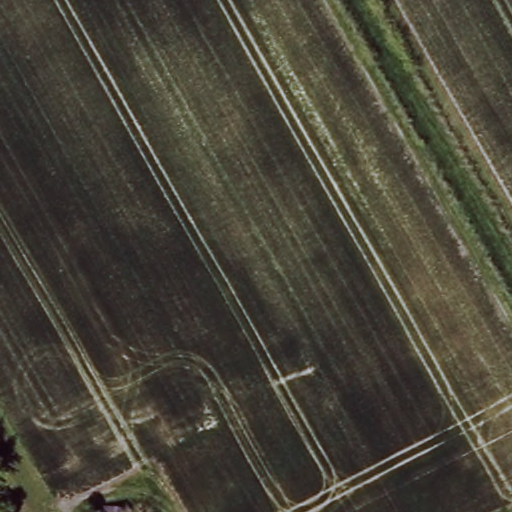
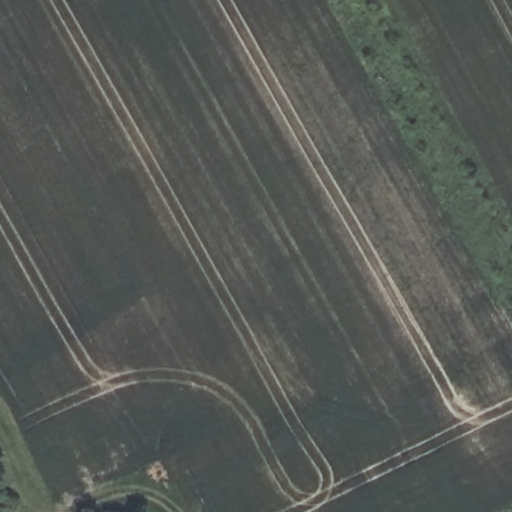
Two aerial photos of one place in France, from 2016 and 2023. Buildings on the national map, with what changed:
unchanged [(129,512),(101,512),(102,508),(129,512)]

